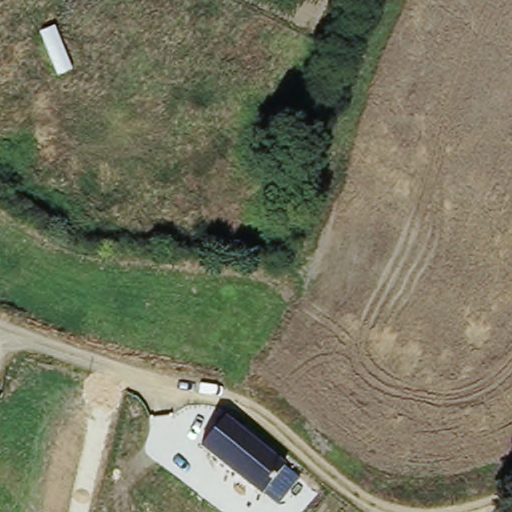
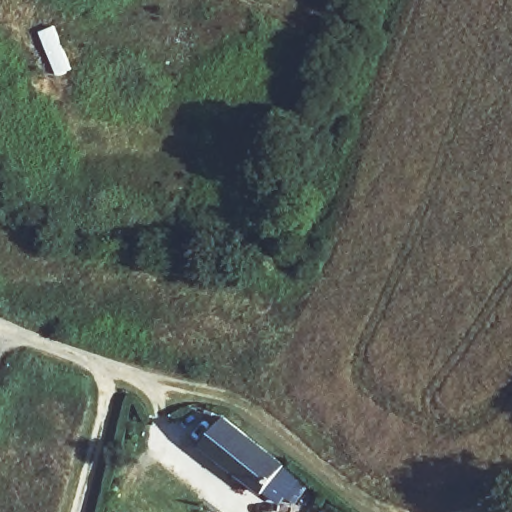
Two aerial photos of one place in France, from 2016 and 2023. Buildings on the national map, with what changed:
unchanged [(266,496),(203,448),(227,418),(289,466),(266,496)]

